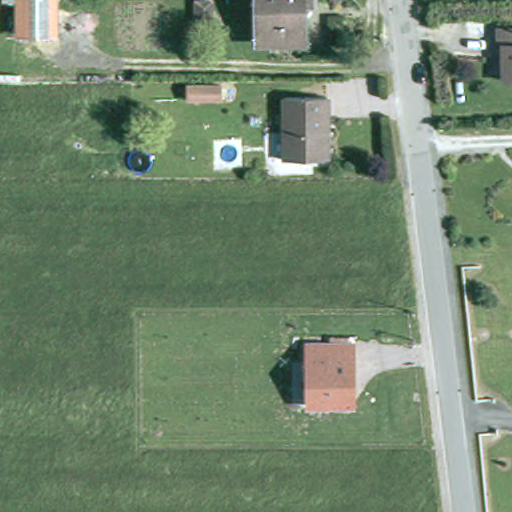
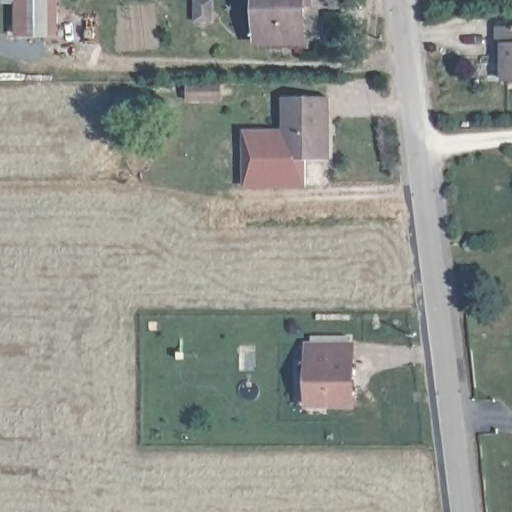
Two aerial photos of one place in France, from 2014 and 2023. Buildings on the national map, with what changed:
unchanged [(16,39),(15,0),(55,0),(56,39),(16,39)]
unchanged [(257,44),(256,0),(303,0),(304,45),(257,44)]
unchanged [(502,78),(502,45),(499,44),(499,26),(512,25),(512,78),(502,78)]
unchanged [(220,104),(187,104),(187,89),(220,88),(220,104)]
unchanged [(327,132),(325,132),(325,159),(286,159),(284,96),(326,96),(327,132)]
new [(286,159),(305,159),(305,186),(244,187),(243,129),(285,130),(286,159)]
unchanged [(355,341),(357,407),(307,407),(306,340),(355,341)]

